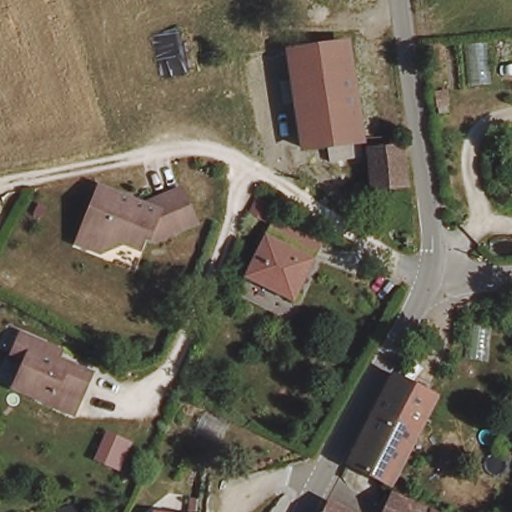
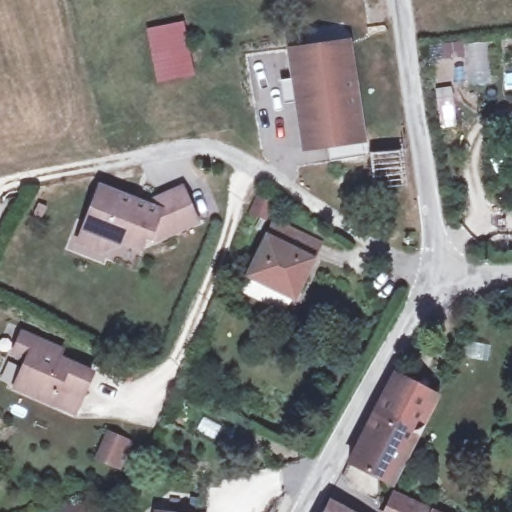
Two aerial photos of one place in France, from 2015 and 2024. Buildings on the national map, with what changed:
new [(185,20),(195,76),(156,83),(144,27),(185,20)]
unchanged [(299,51),(349,41),(364,148),(341,152),(337,138),(311,142),(299,51)]
unchanged [(376,175),(372,138),(397,135),(401,172),(376,175)]
unchanged [(78,249),(83,233),(98,192),(147,207),(181,191),(196,226),(156,244),(148,242),(141,254),(126,248),(114,255),(102,251),(98,256),(78,249)]
unchanged [(248,281),(272,224),(291,232),(319,245),(312,261),(294,302),(248,281)]
unchanged [(50,405),(13,390),(23,360),(10,354),(18,332),(60,349),(55,357),(90,371),(80,394),(73,414),(50,405)]
unchanged [(352,456),(389,387),(400,368),(434,387),(424,407),(389,475),(352,456)]
unchanged [(386,512),(396,492),(434,512),(386,512)]
unchanged [(324,506),(326,504),(336,503),(355,512),(322,512),(324,506)]

